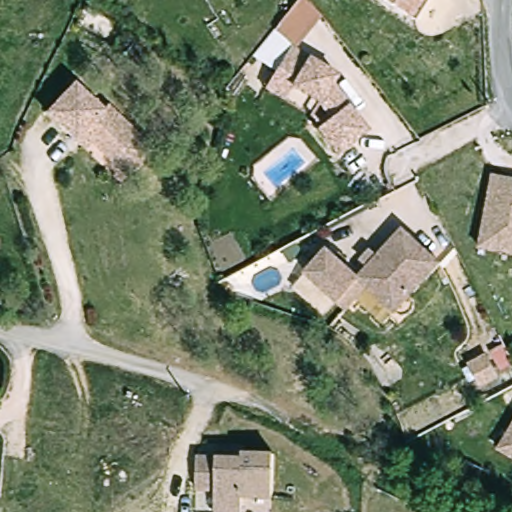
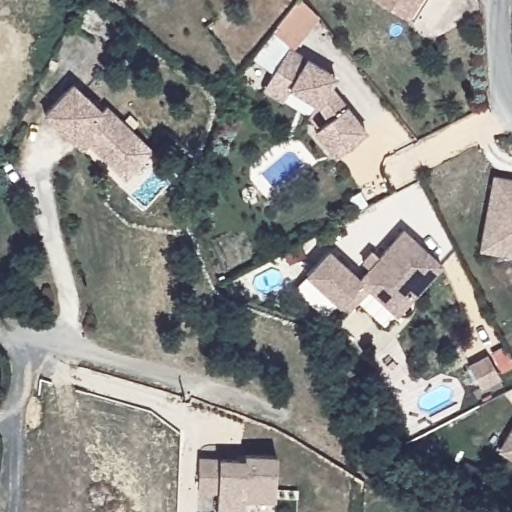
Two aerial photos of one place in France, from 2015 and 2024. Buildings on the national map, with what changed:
unchanged [(293,0),(297,0),(315,16),(289,45),(269,28),(293,0)]
unchanged [(401,9),(384,0),(425,0),(416,18),(401,9)]
unchanged [(336,156),(316,133),(321,129),(319,123),(325,118),(319,105),(292,90),(283,103),(264,91),(273,77),(288,49),(331,75),(335,79),(330,88),(367,133),(336,156)]
unchanged [(118,164),(84,130),(74,140),(47,113),(76,84),(102,111),(110,106),(144,140),(155,151),(130,175),(118,164)]
unchanged [(499,176),(512,180),(512,255),(483,248),(499,176)]
unchanged [(373,289),(352,313),(311,275),(333,251),(364,280),(408,232),(445,267),(414,300),(401,315),(393,308),(373,289)]
unchanged [(471,372),(488,363),(501,386),(484,395),(471,372)]
unchanged [(512,429),(512,457),(503,452),(512,429)]
unchanged [(246,498),(242,512),(223,512),(225,492),(201,489),(203,458),(245,459),(249,453),(280,456),(276,497),(246,498)]

